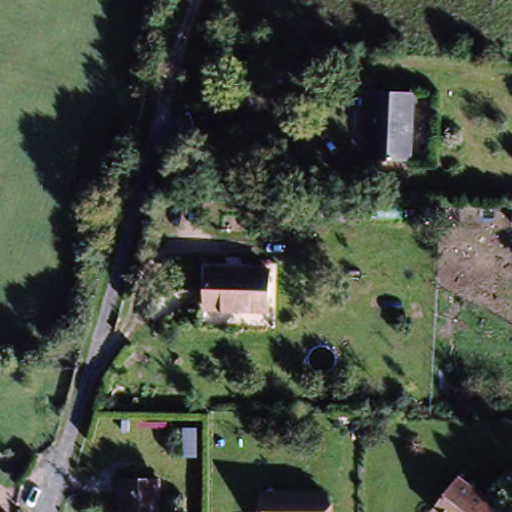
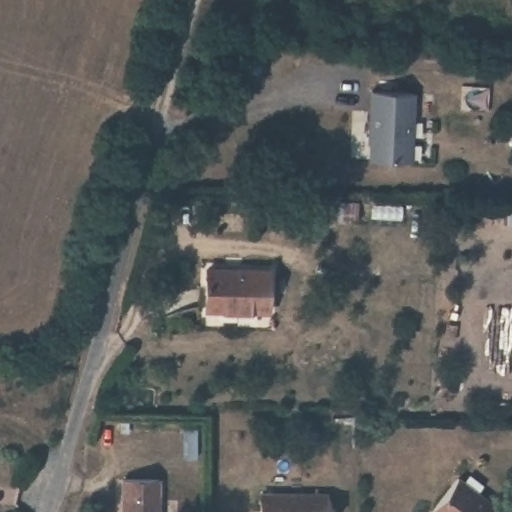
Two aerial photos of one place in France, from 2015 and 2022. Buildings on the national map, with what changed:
unchanged [(368,94),(408,96),(406,163),(367,161),(368,94)]
unchanged [(213,263),(275,265),(272,310),(211,306),(213,263)]
unchanged [(116,475),(152,476),(152,512),(116,512),(116,475)]
unchanged [(456,480),(496,512),(432,512),(456,480)]
unchanged [(262,488),(327,489),(327,512),(261,512),(262,488)]

